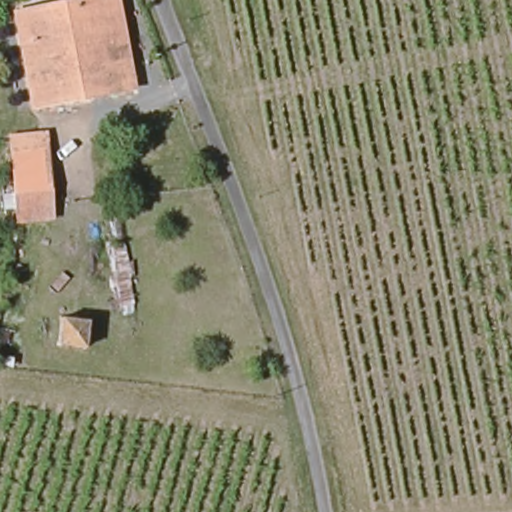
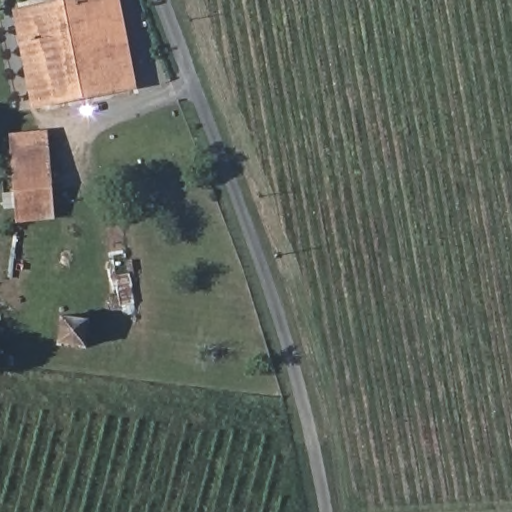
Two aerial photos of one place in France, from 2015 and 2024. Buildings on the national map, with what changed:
unchanged [(136,86),(35,110),(13,16),(83,0),(116,0),(136,86)]
unchanged [(67,216),(16,224),(5,134),(48,132),(67,216)]
unchanged [(99,318),(99,346),(59,346),(59,318),(99,318)]

